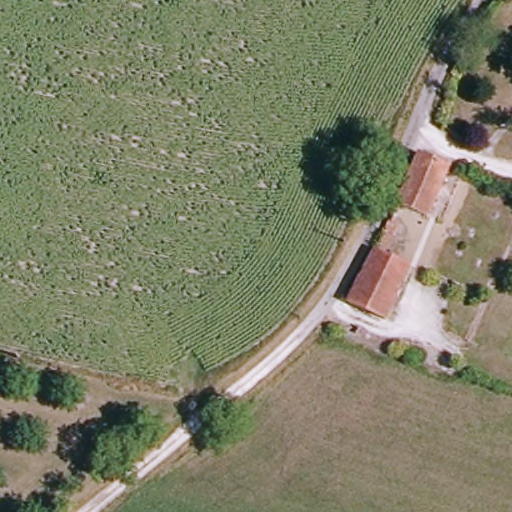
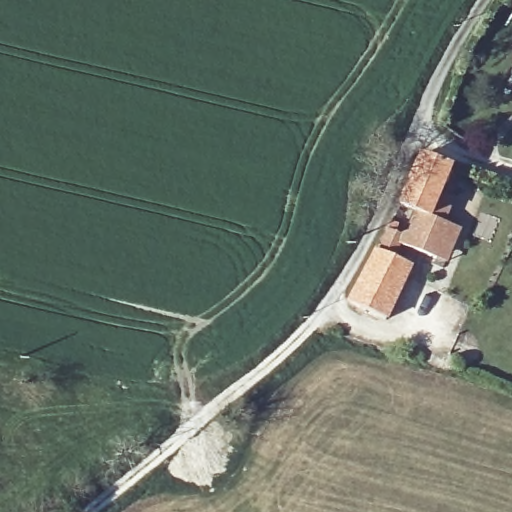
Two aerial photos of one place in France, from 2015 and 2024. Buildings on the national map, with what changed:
unchanged [(414,158),(449,170),(431,219),(393,207),(414,158)]
new [(403,245),(395,262),(386,259),(396,234),(401,236),(410,212),(431,219),(462,230),(449,262),(403,245)]
unchanged [(396,234),(386,259),(410,269),(385,323),(348,306),(385,229),(396,234)]

